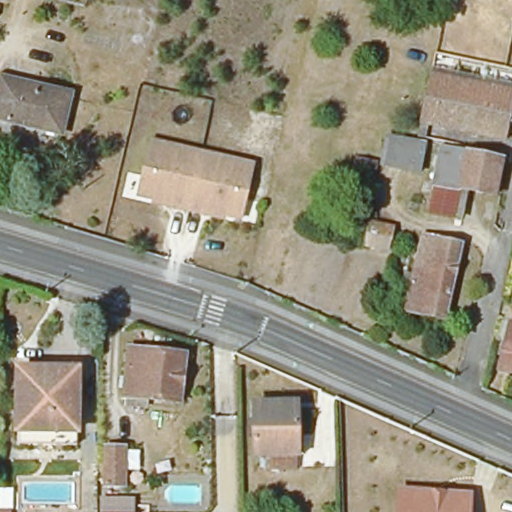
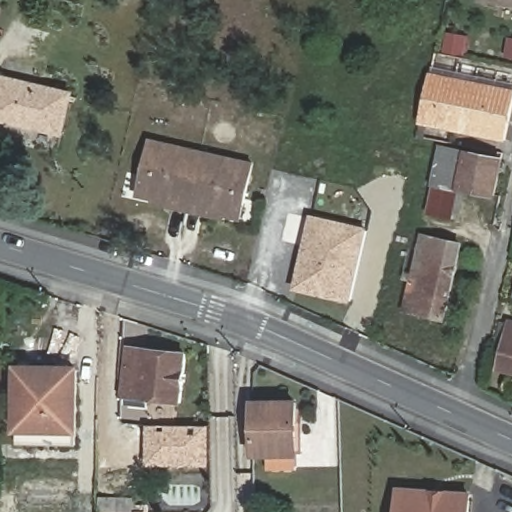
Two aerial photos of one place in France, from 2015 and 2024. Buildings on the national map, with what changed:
new [(477,1),(478,0),(512,0),(512,6),(477,1)]
unchanged [(512,90),(512,113),(506,140),(420,122),(431,73),(512,90)]
unchanged [(0,121),(0,86),(1,80),(34,88),(71,98),(62,137),(0,121)]
unchanged [(379,163),(385,136),(413,141),(424,143),(417,172),(399,168),(379,163)]
unchanged [(171,206),(171,203),(138,195),(150,140),(201,152),(188,210),(171,206)]
unchanged [(427,215),(433,186),(440,151),(503,164),(495,199),(454,191),(448,220),(427,215)]
unchanged [(241,218),(207,211),(206,214),(188,210),(201,152),(253,163),(241,218)]
new [(292,291),(309,214),(367,228),(350,303),(292,291)]
unchanged [(374,227),(396,231),(390,253),(370,248),(374,227)]
unchanged [(442,323),(415,316),(406,305),(422,240),(460,249),(442,323)]
unchanged [(500,362),(510,321),(512,321),(512,370),(511,370),(499,367),(500,362)]
unchanged [(179,402),(151,399),(150,407),(123,404),(123,395),(120,395),(125,347),(183,355),(179,402)]
unchanged [(18,425),(18,367),(74,367),(75,436),(49,436),(18,437),(18,425)]
unchanged [(294,456),(251,456),(251,404),(293,404),(294,456)]
new [(209,426),(209,465),(146,466),(146,425),(209,426)]
unchanged [(122,486),(104,486),(103,448),(122,448),(122,486)]
new [(428,493),(426,512),(395,512),(396,490),(428,493)]
unchanged [(469,497),(468,512),(426,512),(428,493),(469,497)]
unchanged [(132,500),(132,512),(99,512),(99,499),(132,500)]

